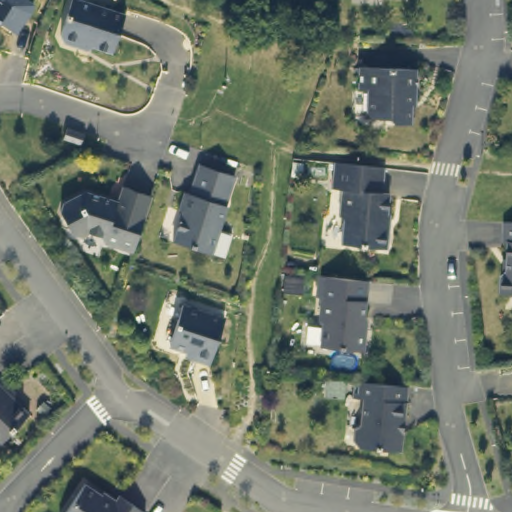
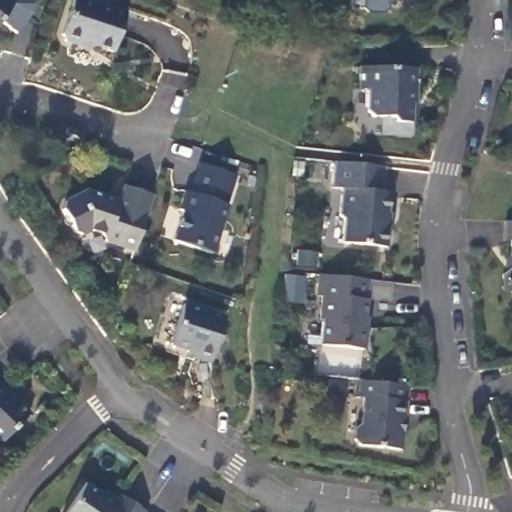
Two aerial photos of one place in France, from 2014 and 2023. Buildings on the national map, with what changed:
unchanged [(26,13),(11,34),(0,27),(0,0),(19,0),(27,6),(26,13)]
unchanged [(127,14),(117,52),(86,43),(79,45),(69,43),(64,37),(74,0),(76,0),(127,14)]
unchanged [(416,67),(415,92),(411,91),(410,121),(391,120),(387,117),(372,116),(366,108),(368,87),(360,86),(361,63),(416,67)]
unchanged [(68,144),(71,134),(87,139),(84,149),(68,144)]
unchanged [(213,250),(176,237),(186,206),(183,205),(188,189),(193,191),(203,162),(239,173),(213,250)]
unchanged [(381,195),(388,196),(385,226),(387,226),(385,248),(339,244),(341,221),(337,215),(340,190),(330,189),(332,165),(383,170),(381,195)]
unchanged [(102,237),(100,231),(88,228),(80,231),(68,227),(59,204),(61,197),(84,187),(116,198),(121,183),(150,193),(131,246),(102,237)]
unchanged [(498,291),(499,273),(506,267),(507,240),(502,240),(503,221),(512,221),(512,292),(498,291)]
unchanged [(365,325),(366,325),(364,348),(321,343),(324,316),(321,315),(324,293),(319,293),(321,272),(370,278),(365,325)]
unchanged [(226,316),(210,361),(194,355),(195,350),(171,341),(185,301),(226,316)]
unchanged [(400,423),(395,423),(395,432),(398,433),(395,453),(355,448),(349,441),(350,430),(355,428),(358,401),(350,400),(352,381),(404,387),(400,423)]
unchanged [(4,441),(0,438),(0,382),(31,413),(4,441)]
unchanged [(115,498),(119,492),(147,511),(146,512),(64,512),(86,479),(115,498)]

